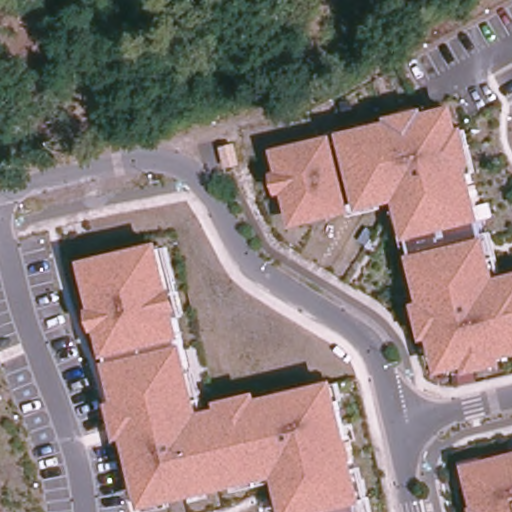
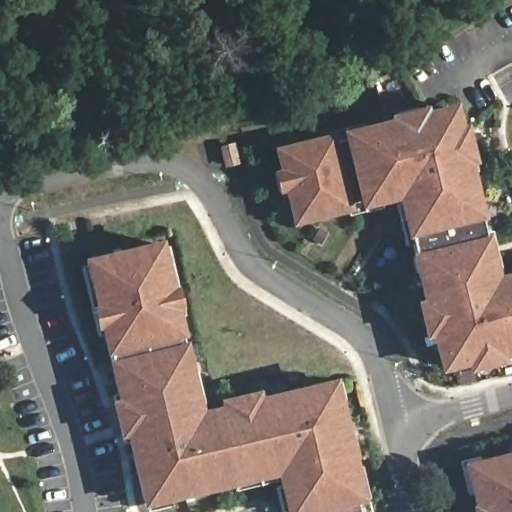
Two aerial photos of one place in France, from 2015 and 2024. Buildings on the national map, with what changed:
unchanged [(466,126),(476,167),(472,168),(498,274),(512,271),(512,356),(504,358),(505,364),(468,374),(466,367),(439,373),(431,339),(425,340),(415,303),(422,301),(397,202),(360,210),(358,202),(341,131),(389,120),(388,115),(426,107),(427,110),(457,104),(462,126),(466,126)]
unchanged [(291,228),(283,194),(277,195),(272,172),(277,171),(272,147),(341,131),(358,202),(350,204),(352,212),(291,228)]
unchanged [(357,504),(323,512),(284,512),(275,477),(142,509),(124,439),(118,440),(109,401),(116,399),(98,330),(97,330),(91,308),(93,307),(82,259),(161,240),(172,289),(175,288),(181,313),(178,313),(202,411),(218,407),(216,401),(259,391),(260,397),(335,379),(366,502),(357,504)]
unchanged [(470,507),(473,506),(462,464),(512,452),(512,512),(471,512),(470,507)]
unchanged [(359,512),(323,512),(357,504),(359,512)]
unchanged [(367,511),(367,512),(362,512),(367,511)]

